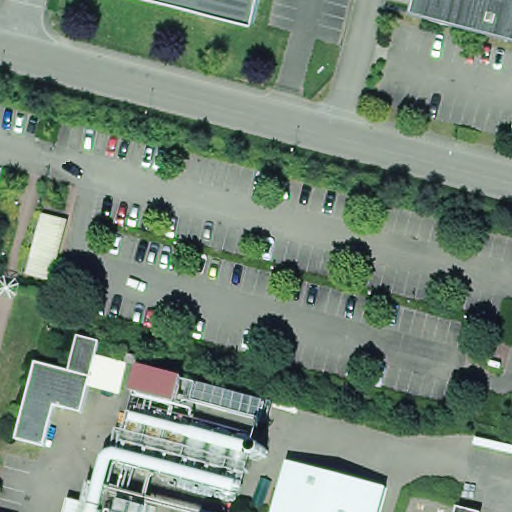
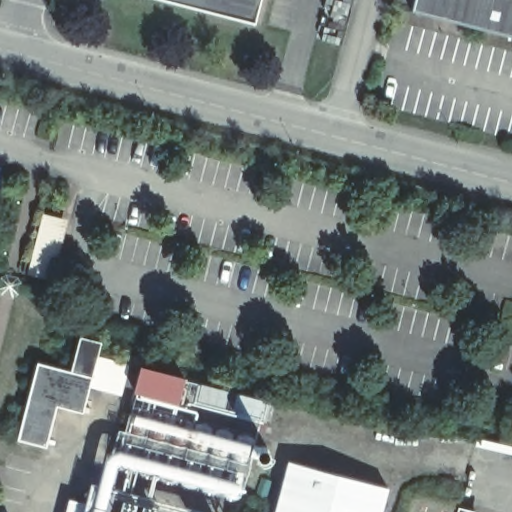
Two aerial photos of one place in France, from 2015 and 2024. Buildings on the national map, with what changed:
unchanged [(182,0),(255,0),(250,17),(182,0)]
unchanged [(512,0),(512,36),(410,10),(413,0),(512,0)]
unchanged [(36,210),(68,214),(49,282),(25,271),(36,210)]
unchanged [(32,361),(61,365),(76,331),(97,336),(95,351),(260,398),(248,442),(260,445),(236,512),(186,512),(167,510),(166,512),(52,512),(58,490),(92,493),(125,396),(78,390),(71,410),(50,410),(36,443),(10,441),(32,361)]
unchanged [(279,461),(383,484),(376,512),(266,512),(279,461)]
unchanged [(470,512),(410,512),(414,498),(470,512)]

